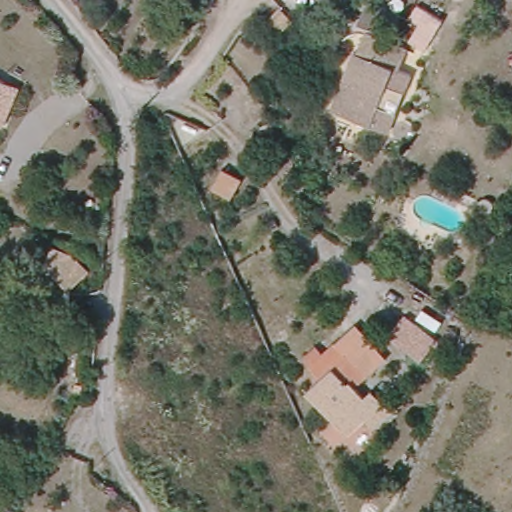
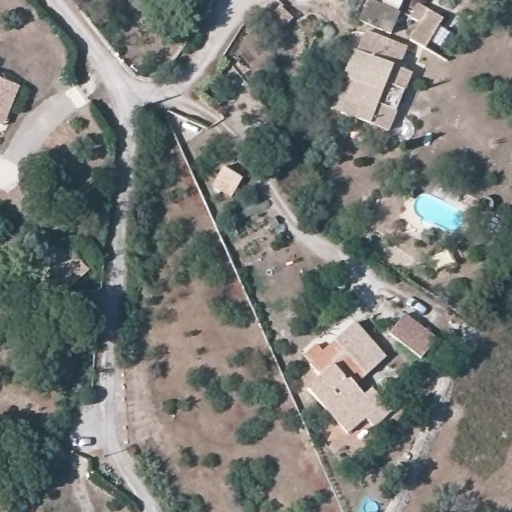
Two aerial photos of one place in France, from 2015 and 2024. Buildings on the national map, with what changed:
unchanged [(369,29),(408,46),(399,68),(414,75),(389,132),(369,122),(387,80),(382,79),(389,62),(355,49),(369,29)]
unchanged [(345,72),(352,55),(355,49),(389,62),(382,79),(387,80),(369,122),(359,118),(341,110),(331,105),(345,72)]
unchanged [(5,80),(20,86),(4,126),(0,124),(0,78),(5,80)]
unchanged [(59,295),(45,278),(35,274),(44,251),(62,259),(77,276),(59,295)]
unchanged [(391,330),(405,312),(436,336),(421,355),(391,330)]
unchanged [(363,367),(351,377),(365,395),(373,388),(391,408),(373,424),(365,414),(348,431),(308,388),(320,376),(310,363),(356,322),(385,356),(368,374),(363,367)]

